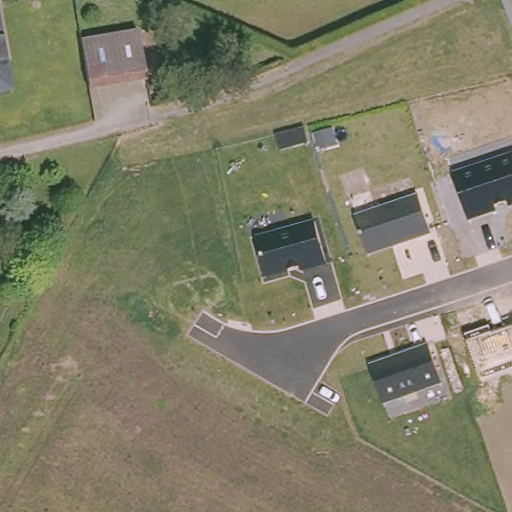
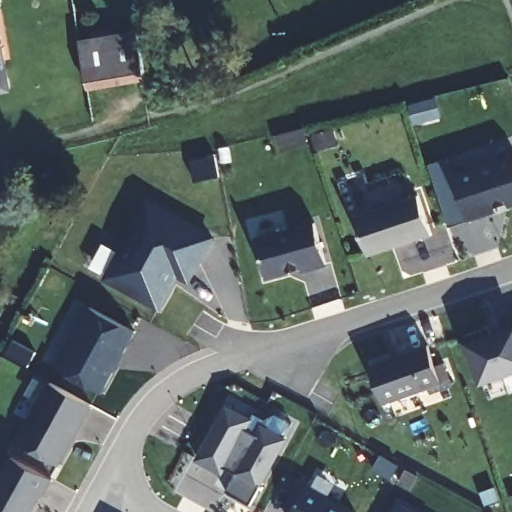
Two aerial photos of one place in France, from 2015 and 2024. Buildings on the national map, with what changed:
unchanged [(135,27),(145,72),(88,85),(78,40),(135,27)]
unchanged [(5,85),(0,86),(0,58),(5,85)]
unchanged [(512,207),(469,222),(450,173),(512,153),(512,207)]
unchanged [(417,194),(432,235),(367,256),(355,215),(417,194)]
new [(104,280),(149,202),(215,238),(190,285),(178,278),(160,311),(104,280)]
unchanged [(315,220),(327,263),(264,279),(253,237),(315,220)]
new [(57,367),(90,306),(136,332),(104,393),(57,367)]
unchanged [(492,333),(512,327),(512,372),(482,383),(465,336),(490,327),(492,333)]
unchanged [(429,343),(443,384),(382,405),(369,364),(429,343)]
new [(17,443),(50,383),(92,406),(60,466),(17,443)]
new [(218,479),(195,466),(223,414),(247,427),(242,435),(250,420),(262,427),(272,421),(289,430),(280,445),(258,433),(282,446),(257,492),(258,493),(248,512),(247,512),(222,499),(232,481),(221,475),(218,479)]
new [(49,486),(40,503),(37,501),(32,512),(0,512),(0,480),(8,464),(49,486)]
new [(340,512),(294,512),(307,493),(340,512)]
new [(398,505),(411,512),(394,512),(398,505)]

